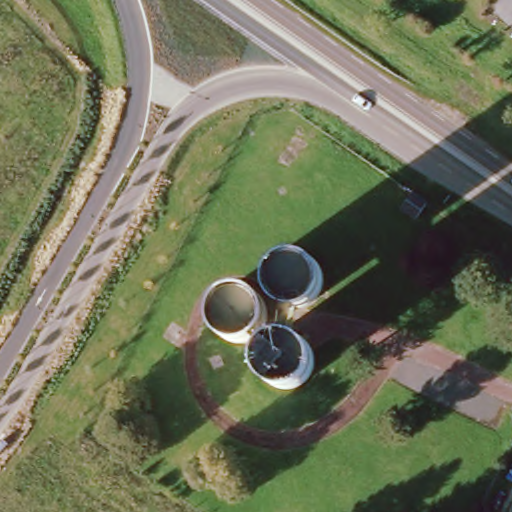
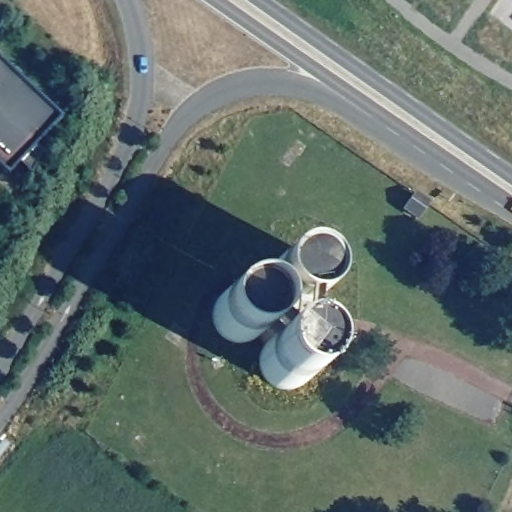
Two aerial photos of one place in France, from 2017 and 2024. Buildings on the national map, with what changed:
new [(60,115),(36,141),(42,147),(33,170),(19,160),(7,173),(0,166),(0,60),(60,115)]
unchanged [(417,219),(403,208),(414,196),(427,205),(417,219)]

